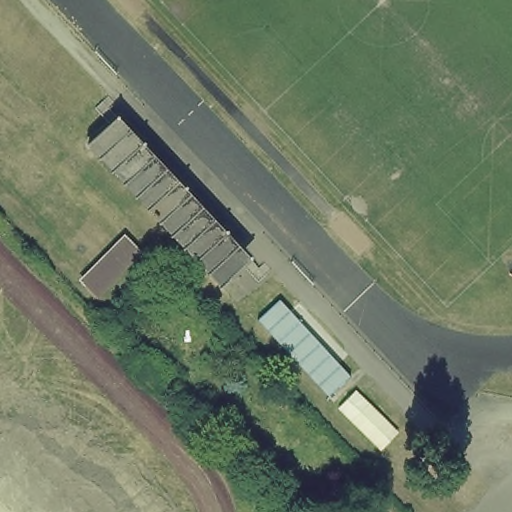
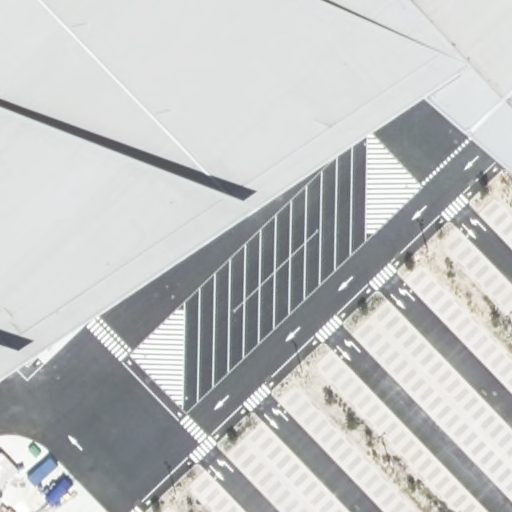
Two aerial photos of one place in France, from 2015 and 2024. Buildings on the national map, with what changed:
new [(477,125),(432,95),(254,210),(0,381),(0,0),(512,0),(512,92),(477,125)]
new [(477,125),(512,92),(512,154),(477,125)]
demolished [(217,286),(89,155),(120,121),(248,260),(217,286)]
demolished [(146,255),(100,296),(81,279),(125,234),(146,255)]
demolished [(328,399),(258,320),(279,300),(350,376),(328,399)]
new [(19,470),(2,487),(0,486),(0,454),(2,452),(19,470)]

